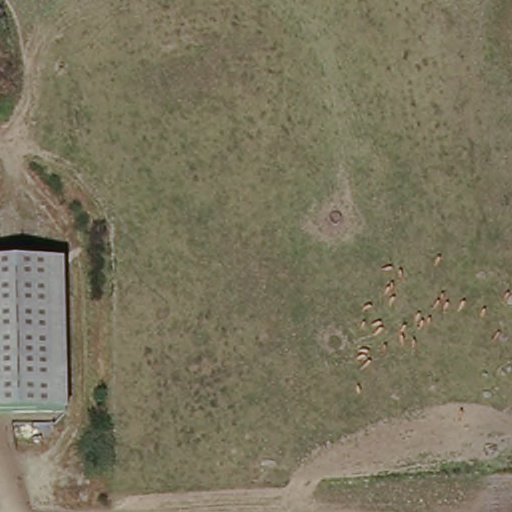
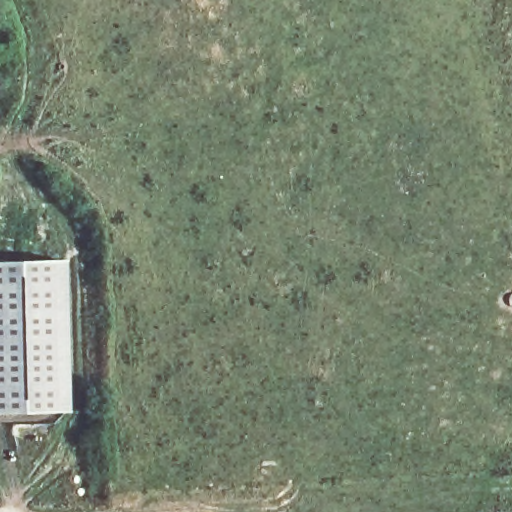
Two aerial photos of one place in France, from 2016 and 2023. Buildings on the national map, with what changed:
unchanged [(71,407),(0,410),(0,260),(65,257),(71,407)]

